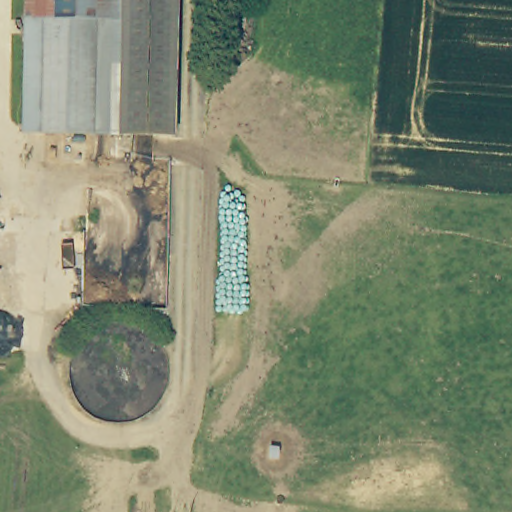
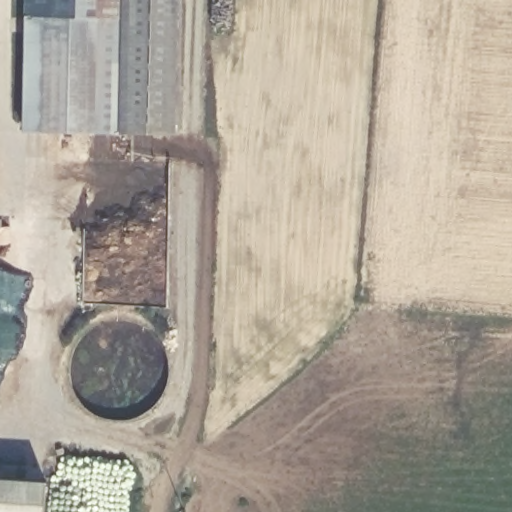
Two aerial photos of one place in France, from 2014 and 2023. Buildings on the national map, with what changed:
unchanged [(56,0),(56,19),(28,19),(28,0),(56,0)]
unchanged [(56,0),(178,0),(177,135),(28,134),(28,19),(56,19),(56,0)]
new [(48,483),(45,512),(0,512),(0,480),(48,483)]

